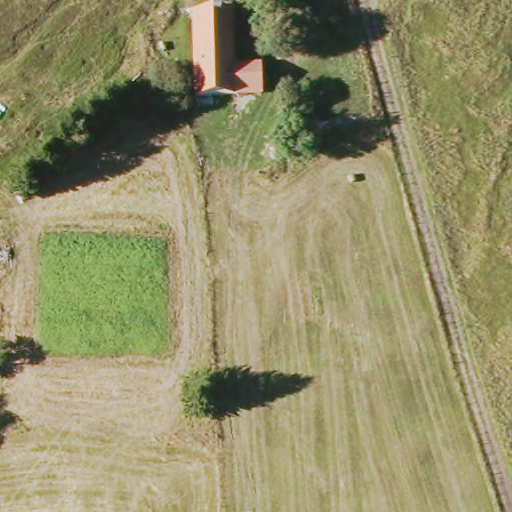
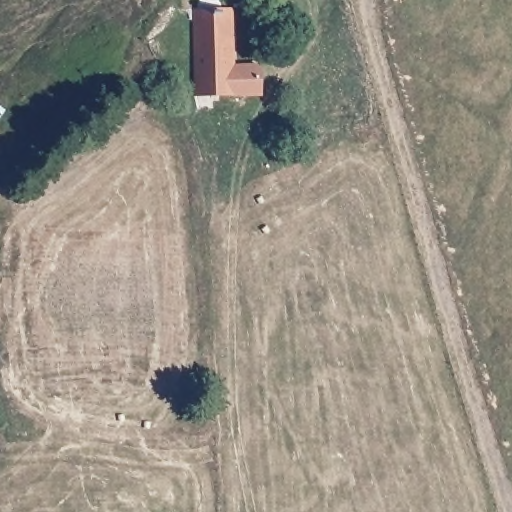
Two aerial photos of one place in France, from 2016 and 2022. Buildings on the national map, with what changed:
unchanged [(231,68),(258,68),(258,96),(231,96),(191,96),(193,12),(231,12),(231,68)]

